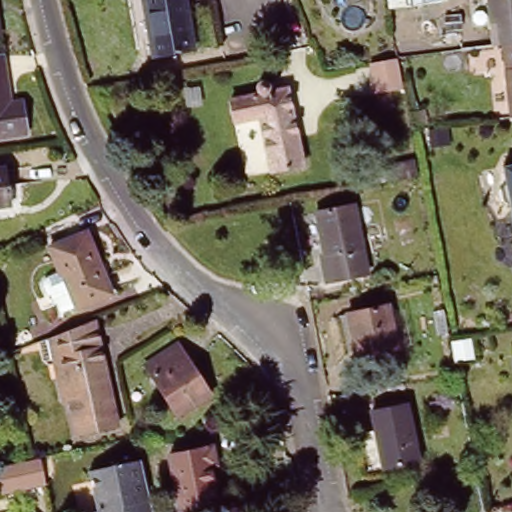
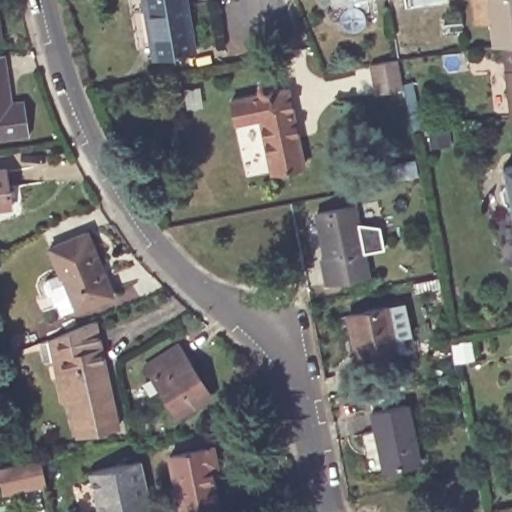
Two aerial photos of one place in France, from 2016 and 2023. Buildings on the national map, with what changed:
unchanged [(145,40),(149,40),(142,0),(181,0),(190,51),(150,59),(145,40)]
unchanged [(443,5),(387,11),(385,0),(442,0),(443,5)]
unchanged [(489,48),(484,0),(512,0),(512,46),(499,47),(489,48)]
unchanged [(507,119),(499,47),(512,46),(512,119),(507,119)]
unchanged [(10,104),(22,102),(27,135),(0,139),(0,57),(4,56),(10,104)]
unchanged [(398,59),(404,88),(377,93),(372,64),(398,59)]
unchanged [(255,118),(231,123),(227,101),(257,94),(255,92),(254,91),(254,87),(254,85),(255,84),(258,82),(261,82),(264,83),(265,86),(265,89),(265,92),(284,89),(300,166),(266,173),(255,118)]
unchanged [(512,165),(512,242),(496,168),(512,165)]
unchanged [(0,202),(0,192),(2,201),(0,202)]
unchanged [(317,260),(320,259),(312,215),(350,208),(365,275),(322,284),(317,260)]
unchanged [(52,303),(49,304),(39,280),(55,273),(44,243),(83,227),(107,291),(57,312),(52,303)]
unchanged [(344,317),(385,308),(394,350),(353,359),(344,317)]
unchanged [(47,366),(40,365),(34,345),(51,338),(90,322),(114,426),(73,436),(57,364),(47,366)]
unchanged [(141,372),(172,352),(207,402),(177,422),(141,372)]
unchanged [(367,418),(404,411),(415,467),(380,475),(367,418)]
unchanged [(209,454),(212,470),(207,472),(215,511),(209,512),(174,512),(165,463),(209,454)]
unchanged [(46,485),(1,493),(0,486),(0,468),(35,461),(40,459),(46,485)]
unchanged [(95,512),(97,511),(88,472),(137,461),(149,512),(95,512)]

